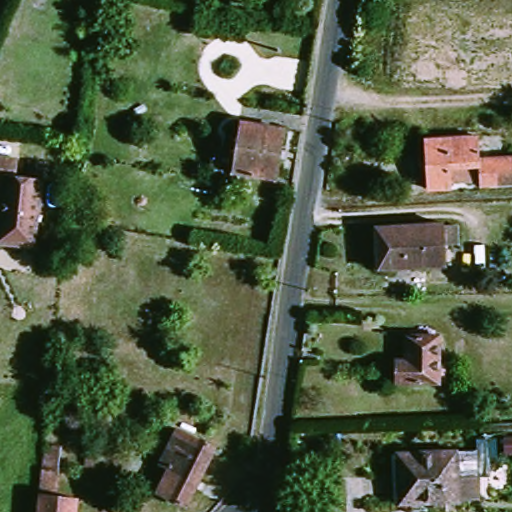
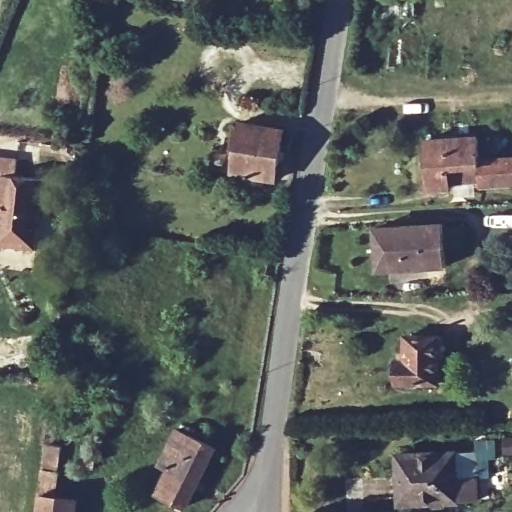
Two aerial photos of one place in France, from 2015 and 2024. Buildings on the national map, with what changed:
unchanged [(80,113),(88,114),(87,132),(78,131),(80,113)]
unchanged [(286,136),(278,185),(235,178),(242,129),(286,136)]
unchanged [(474,169),(453,170),(455,192),(435,193),(432,143),(481,139),(483,164),(512,162),(512,189),(475,191),(474,169)]
unchanged [(14,156),(12,173),(40,176),(32,246),(0,242),(0,154),(14,156)]
unchanged [(445,270),(378,273),(377,231),(443,228),(445,270)]
unchanged [(398,356),(407,355),(407,340),(437,340),(437,388),(397,387),(398,356)]
unchanged [(180,472),(175,470),(165,466),(182,432),(190,436),(220,449),(191,508),(172,498),(172,496),(168,493),(180,472)]
unchanged [(42,499),(42,498),(45,448),(62,449),(58,500),(77,502),(76,512),(40,512),(42,499)]
unchanged [(398,458),(457,454),(460,482),(478,481),(480,502),(402,508),(398,458)]

